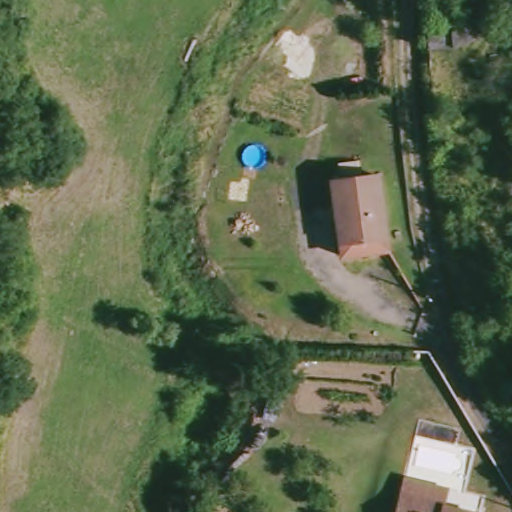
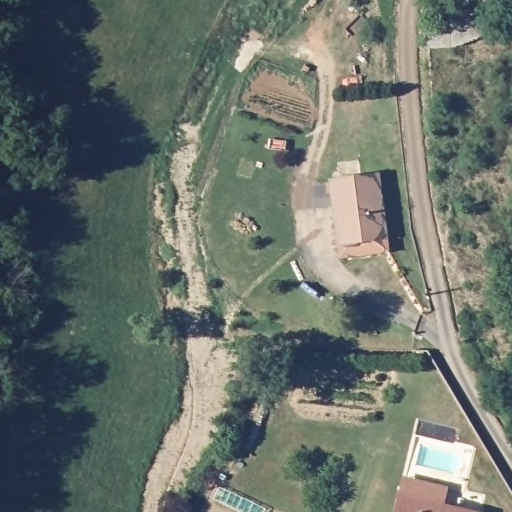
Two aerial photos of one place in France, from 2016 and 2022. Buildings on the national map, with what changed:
unchanged [(330,180),(371,170),(390,242),(345,251),(330,180)]
unchanged [(396,492),(436,502),(436,506),(469,512),(391,512),(396,492)]

